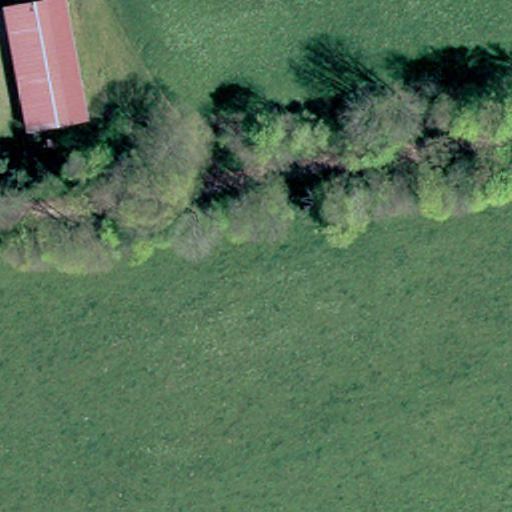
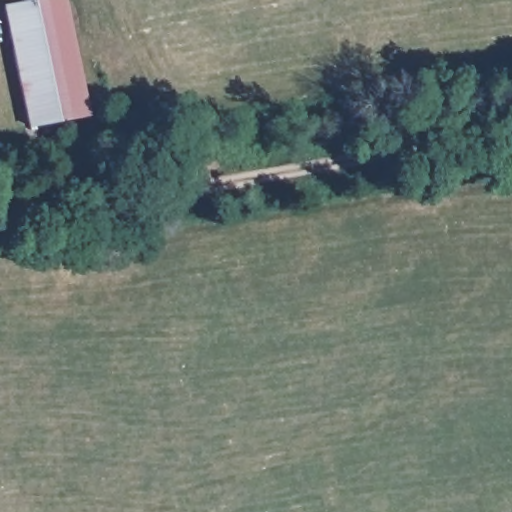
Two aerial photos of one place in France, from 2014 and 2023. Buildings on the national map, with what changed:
unchanged [(69,0),(93,120),(29,133),(3,9),(43,0),(69,0)]

